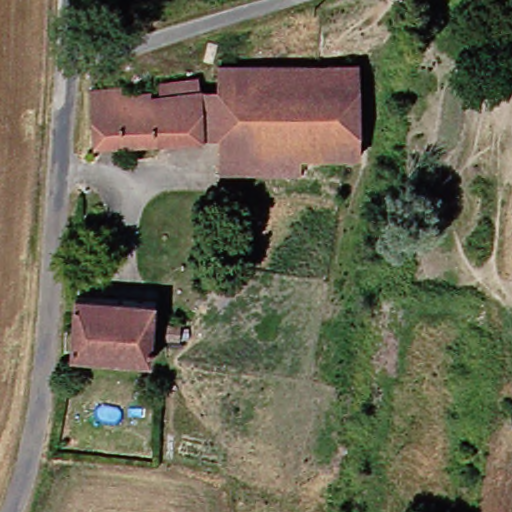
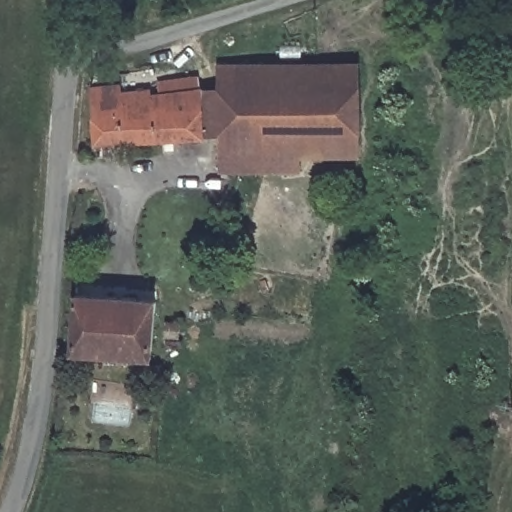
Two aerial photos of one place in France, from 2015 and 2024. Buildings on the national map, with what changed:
unchanged [(233,68),(270,68),(273,157),(315,157),(315,172),(236,173),(232,140),(219,141),(217,94),(233,94),(233,68)]
unchanged [(273,157),(270,68),(375,68),(377,157),(315,157),(273,157)]
unchanged [(114,145),(109,88),(137,86),(137,93),(164,93),(165,98),(173,98),(173,85),(212,83),(212,94),(217,94),(219,141),(114,145)]
unchanged [(167,303),(162,361),(82,355),(87,297),(167,303)]
unchanged [(187,320),(185,332),(172,330),(174,318),(187,320)]

